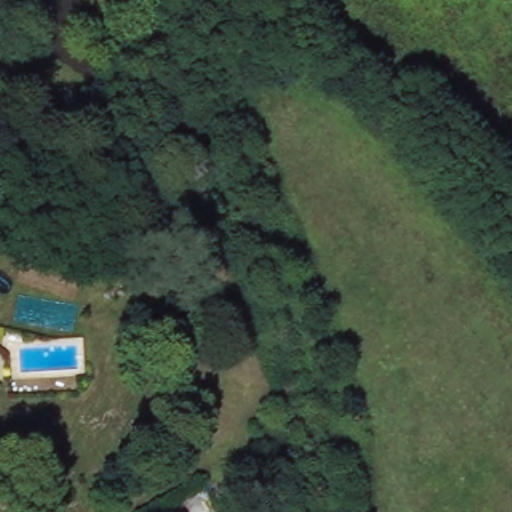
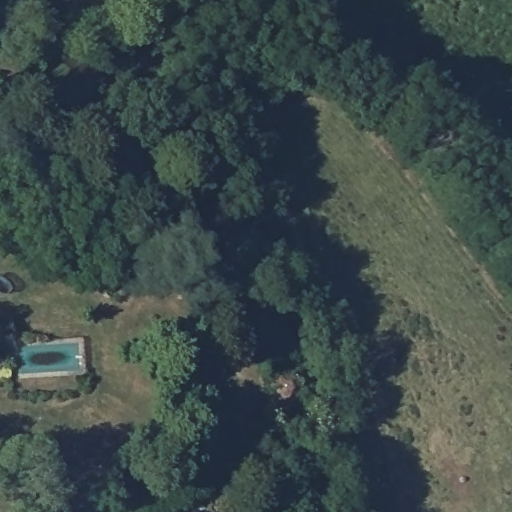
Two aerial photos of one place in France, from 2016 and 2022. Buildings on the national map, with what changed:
unchanged [(247,502),(250,512),(225,512),(247,502)]

